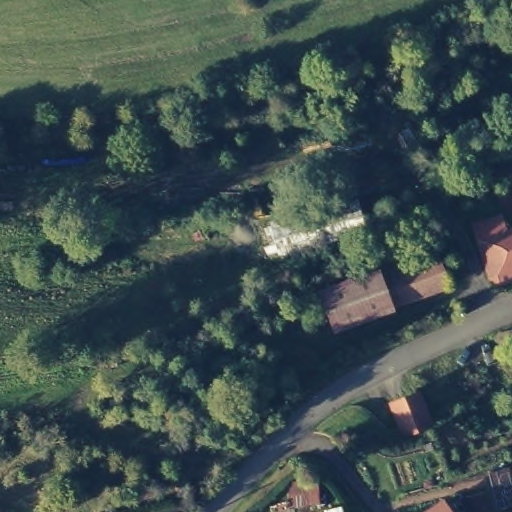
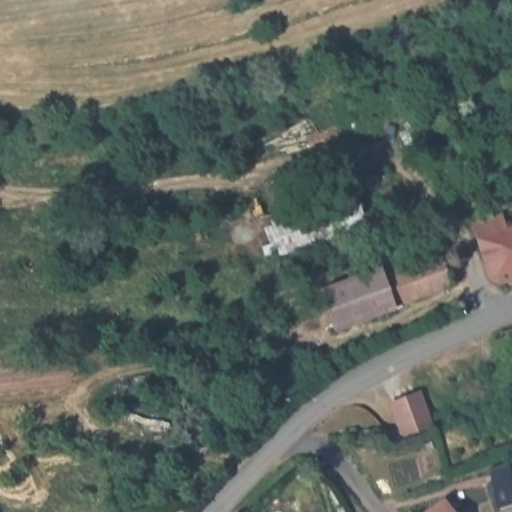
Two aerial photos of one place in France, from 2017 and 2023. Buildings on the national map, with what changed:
unchanged [(260,245),(267,243),(262,227),(270,225),(267,219),(356,196),(363,233),(263,260),(260,245)]
unchanged [(494,275),(478,231),(512,220),(512,261),(505,264),(509,273),(500,276),(494,275)]
unchanged [(455,290),(335,334),(317,290),(379,269),(374,260),(432,236),(455,290)]
unchanged [(405,430),(393,403),(420,391),(430,420),(405,430)]
unchanged [(488,472),(510,467),(512,480),(512,505),(497,510),(488,472)]
unchanged [(293,482),(318,478),(319,505),(293,507),(293,482)]
unchanged [(430,512),(443,502),(451,512),(430,512)]

